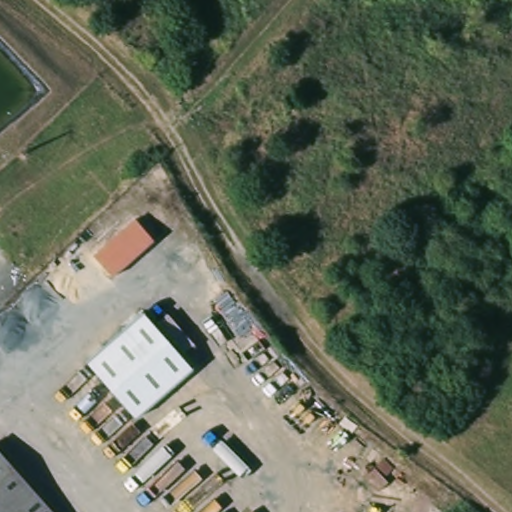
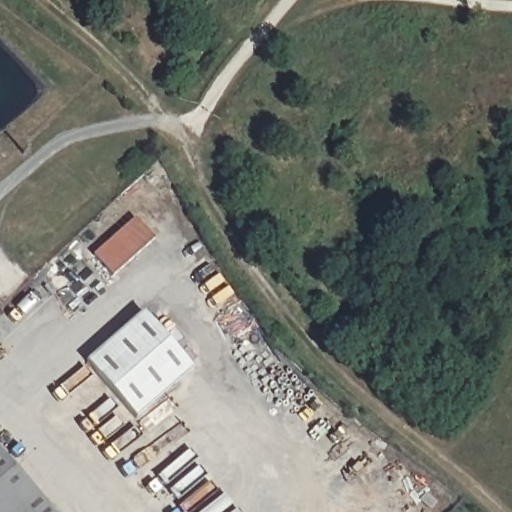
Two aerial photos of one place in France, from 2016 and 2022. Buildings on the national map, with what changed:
unchanged [(154,238),(115,276),(95,255),(134,218),(154,238)]
unchanged [(86,362),(143,312),(192,369),(136,419),(86,362)]
unchanged [(0,449),(56,512),(0,512),(0,449)]

